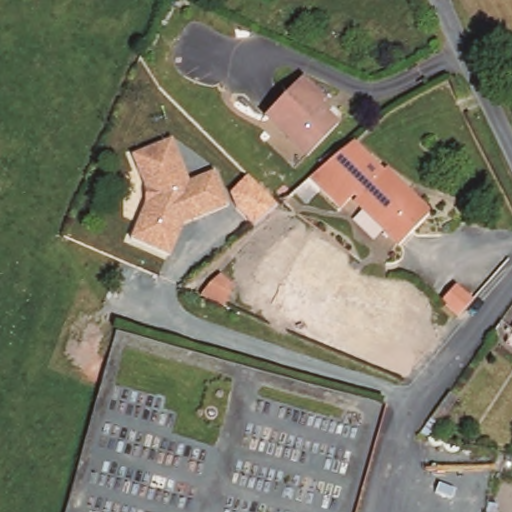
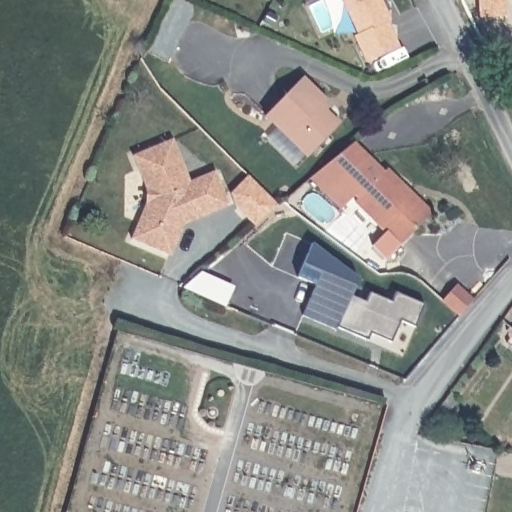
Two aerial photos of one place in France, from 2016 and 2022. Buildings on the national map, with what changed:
new [(364,62),(352,35),(357,33),(341,0),(381,0),(391,21),(387,23),(399,47),(364,62)]
new [(510,17),(485,19),(483,0),(509,0),(510,17)]
unchanged [(305,81),(328,104),(322,109),(341,127),(310,159),(268,118),(305,81)]
unchanged [(214,165),(229,200),(184,219),(170,250),(130,233),(146,198),(146,182),(131,151),(165,137),(171,134),(185,167),(189,176),(214,165)]
unchanged [(386,176),(389,175),(434,218),(402,250),(357,206),(361,203),(357,199),(343,214),(312,183),(323,173),(355,145),(386,176)]
new [(254,224),(235,203),(231,191),(248,176),(277,204),(254,224)]
new [(400,321),(390,342),(369,333),(366,340),(302,313),(316,285),(298,277),(313,245),(358,279),(351,296),(366,303),(370,294),(392,303),(396,294),(422,304),(413,326),(400,321)]
unchanged [(219,288),(230,280),(243,292),(235,311),(233,310),(210,300),(219,288)]
unchanged [(455,303),(462,294),(469,286),(485,299),(471,316),(455,303)]

